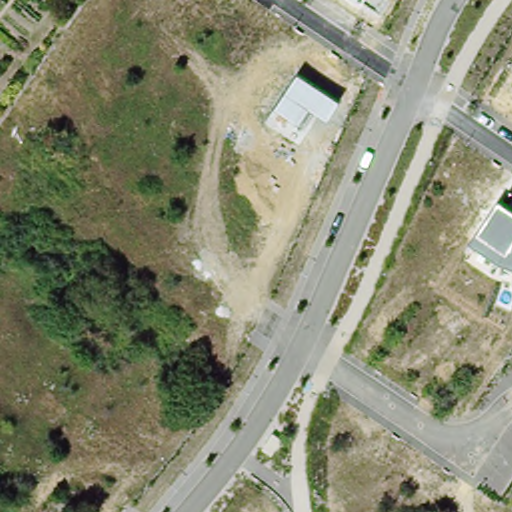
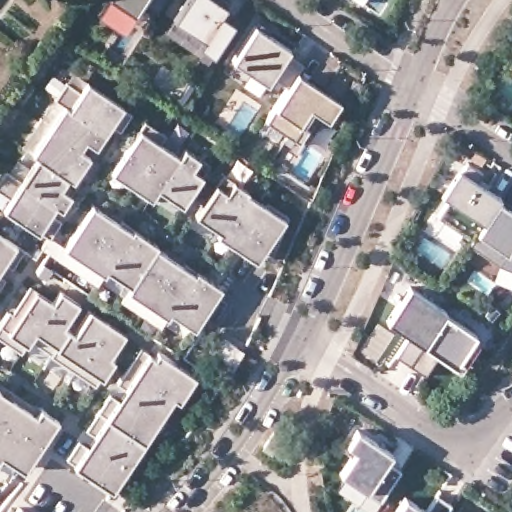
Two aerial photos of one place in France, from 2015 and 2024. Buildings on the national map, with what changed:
new [(157,13),(142,3),(135,14),(115,0),(166,0),(157,13)]
unchanged [(187,0),(218,0),(227,6),(222,15),(235,24),(213,55),(209,61),(165,32),(173,20),(187,0)]
unchanged [(362,4),(356,0),(364,0),(362,4)]
new [(289,86),(272,76),(266,84),(232,62),(255,27),(290,50),(288,55),(304,64),(298,72),(289,86)]
unchanged [(277,105),(298,72),(339,99),(326,118),(319,112),(300,142),(265,119),(277,105)]
new [(111,125),(95,147),(87,140),(80,150),(91,156),(82,170),(85,173),(60,208),(55,205),(49,214),(62,221),(52,235),(65,245),(92,205),(131,231),(134,228),(157,244),(155,246),(195,273),(197,270),(220,287),(194,327),(170,312),(160,326),(120,301),(130,285),(105,270),(97,283),(41,247),(47,235),(40,230),(37,232),(3,209),(9,199),(0,193),(0,179),(6,170),(22,180),(37,157),(22,147),(67,83),(82,92),(87,84),(132,114),(120,131),(111,125)]
new [(182,205),(158,190),(152,199),(110,172),(145,122),(165,135),(160,144),(180,156),(185,149),(208,165),(182,205)]
new [(492,209),(477,230),(472,238),(439,216),(450,199),(442,195),(458,170),(463,172),(468,164),(482,173),(475,184),(498,199),(492,209)]
new [(288,218),(273,256),(265,250),(257,262),(218,235),(220,231),(196,215),(223,174),(248,190),(247,195),(264,207),(266,204),(288,218)]
unchanged [(477,230),(498,199),(512,208),(512,268),(498,263),(469,243),(477,230)]
new [(4,263),(0,270),(0,236),(23,251),(13,268),(4,263)]
new [(0,278),(6,281),(0,290),(0,278)]
unchanged [(410,286),(446,310),(445,312),(423,345),(410,365),(395,355),(408,335),(387,321),(410,286)]
new [(29,287),(52,302),(60,292),(76,302),(62,326),(75,333),(90,311),(123,333),(108,357),(114,360),(95,386),(30,341),(21,353),(0,340),(0,325),(9,311),(13,313),(29,287)]
new [(459,368),(454,365),(423,345),(445,312),(475,333),(480,336),(459,368)]
new [(155,358),(159,354),(196,378),(179,402),(173,399),(111,492),(72,467),(75,463),(68,457),(79,438),(87,443),(95,432),(87,428),(110,393),(120,400),(127,387),(117,381),(140,347),(155,358)]
new [(24,470),(1,456),(0,458),(0,391),(37,414),(40,407),(58,419),(24,470)]
new [(355,450),(347,445),(357,429),(392,453),(387,460),(401,470),(380,500),(340,473),(355,450)]
new [(437,492),(452,503),(445,512),(395,512),(405,496),(424,510),(437,492)]
new [(0,512),(0,508),(12,493),(38,512),(0,512)]

